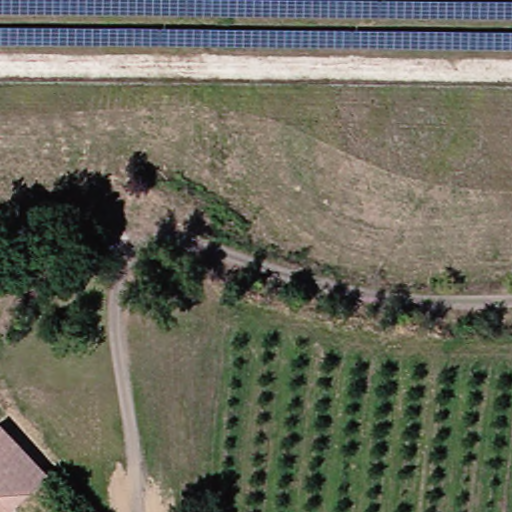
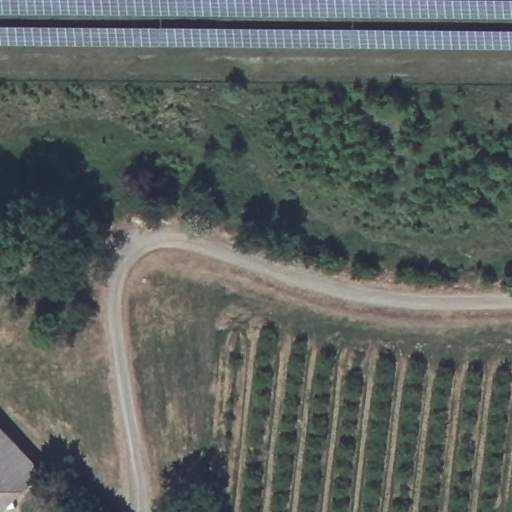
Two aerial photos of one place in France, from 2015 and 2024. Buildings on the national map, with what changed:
unchanged [(0,437),(36,477),(0,509),(0,437)]

